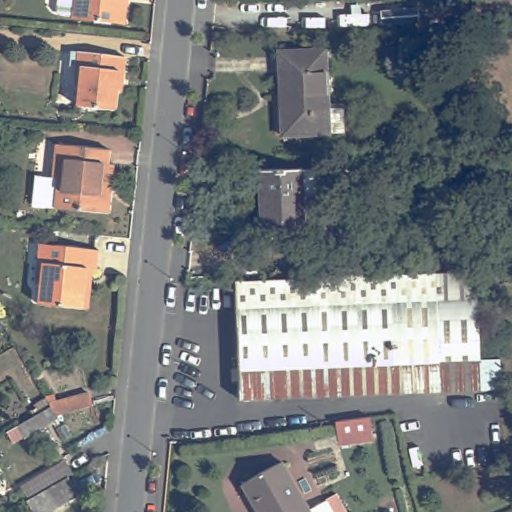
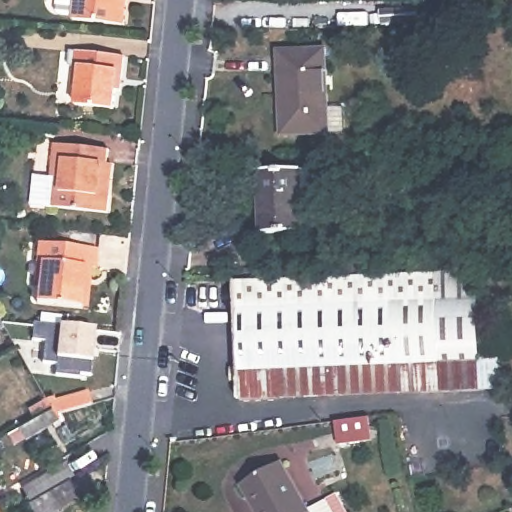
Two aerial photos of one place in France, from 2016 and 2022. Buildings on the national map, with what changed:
unchanged [(67,0),(134,0),(130,29),(82,23),(69,22),(65,18),(67,0)]
unchanged [(479,0),(512,0),(512,12),(480,14),(479,0)]
unchanged [(128,96),(122,95),(121,113),(85,109),(88,91),(81,90),(86,57),(132,62),(128,96)]
unchanged [(287,104),(286,59),(333,58),(335,143),(293,143),(288,143),(287,104)]
unchanged [(119,213),(66,207),(47,205),(50,175),(64,176),(67,144),(120,150),(118,163),(124,164),(121,195),(119,213)]
unchanged [(260,206),(260,174),(319,174),(320,213),(303,213),(303,237),(264,238),(260,238),(260,206)]
unchanged [(44,305),(48,265),(42,264),(45,245),(105,252),(103,272),(94,271),(92,285),(90,311),(44,305)]
unchanged [(245,284),(478,275),(484,363),(501,362),(503,392),(246,403),(243,284),(245,284)]
new [(93,364),(92,374),(80,373),(80,376),(55,373),(56,366),(43,364),(46,341),(32,340),(34,322),(61,326),(96,330),(93,364)]
unchanged [(18,436),(12,425),(45,406),(43,403),(65,399),(86,395),(89,406),(81,408),(67,411),(50,415),(51,417),(18,436)]
unchanged [(343,424),(375,419),(379,442),(346,447),(343,424)]
unchanged [(59,512),(35,512),(31,506),(36,504),(28,490),(70,464),(79,478),(73,482),(83,498),(59,512)]
unchanged [(312,512),(260,512),(248,490),(289,469),(312,512)]
unchanged [(2,510),(0,512),(0,507),(2,510)]

